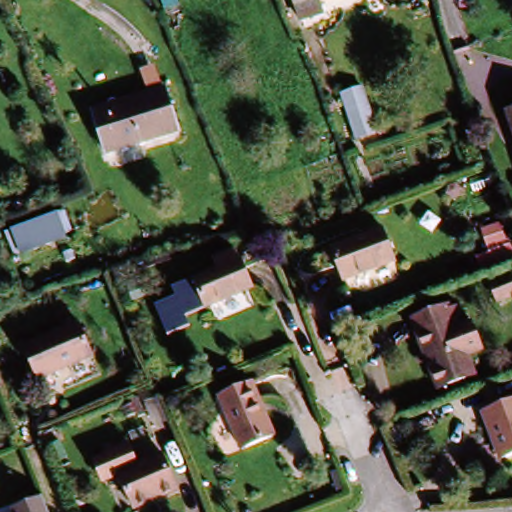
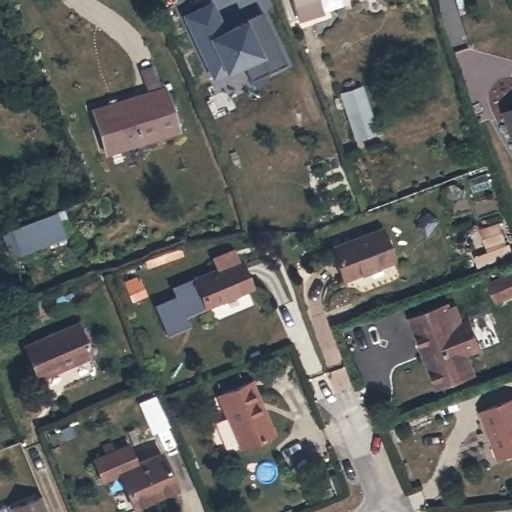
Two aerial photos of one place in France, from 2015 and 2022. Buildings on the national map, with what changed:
new [(285,63),(250,80),(253,88),(215,106),(207,87),(226,75),(225,72),(212,81),(180,15),(212,0),(226,27),(246,18),(261,9),(285,63)]
unchanged [(320,13),(297,20),(291,4),(290,0),(315,0),(320,13)]
unchanged [(359,85),(375,130),(356,137),(339,91),(359,85)]
unchanged [(160,86),(178,130),(110,153),(92,109),(160,86)]
unchanged [(512,107),(512,111),(510,107),(512,107)]
unchanged [(55,207),(70,237),(11,258),(0,232),(0,225),(55,207)]
unchanged [(380,226),(395,260),(343,280),(330,247),(380,226)]
unchanged [(238,262),(250,290),(202,310),(190,280),(238,262)]
unchanged [(512,290),(512,300),(493,307),(486,289),(508,280),(512,290)]
unchanged [(444,306),(446,310),(451,308),(459,324),(467,321),(480,348),(465,354),(475,375),(433,392),(402,322),(444,306)]
unchanged [(79,326),(91,359),(37,380),(24,344),(79,326)]
unchanged [(248,381),(272,435),(239,450),(214,394),(248,381)]
unchanged [(478,418),(512,405),(512,462),(498,467),(478,418)]
unchanged [(176,493),(134,512),(127,512),(111,478),(160,457),(176,493)]
unchanged [(46,512),(15,512),(40,501),(46,512)]

